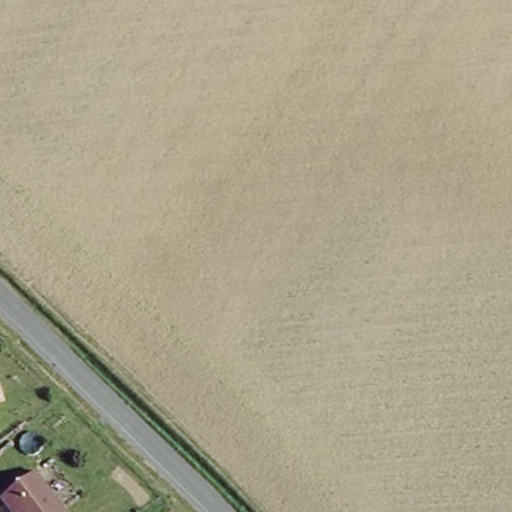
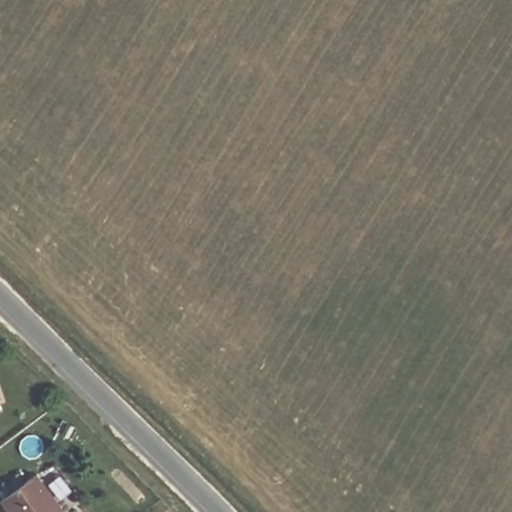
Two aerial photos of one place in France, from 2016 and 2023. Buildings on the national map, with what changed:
unchanged [(6,512),(0,505),(0,495),(29,473),(59,512),(6,512)]

